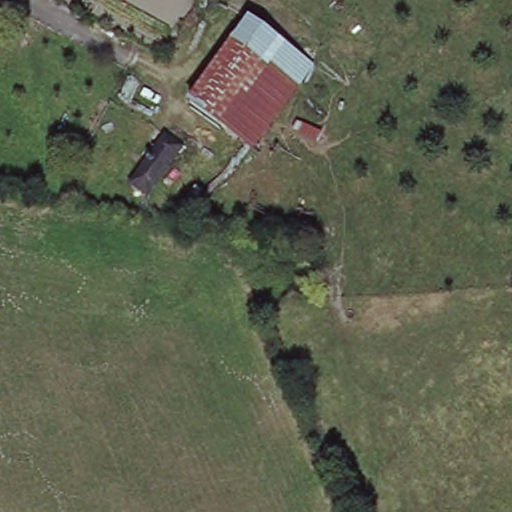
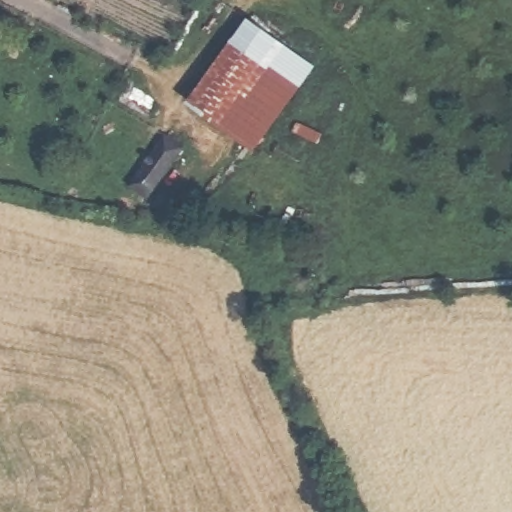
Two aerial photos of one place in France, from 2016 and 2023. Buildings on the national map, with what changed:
unchanged [(247,13),(314,59),(253,146),(186,100),(247,13)]
unchanged [(184,141),(150,191),(134,182),(169,132),(184,141)]

